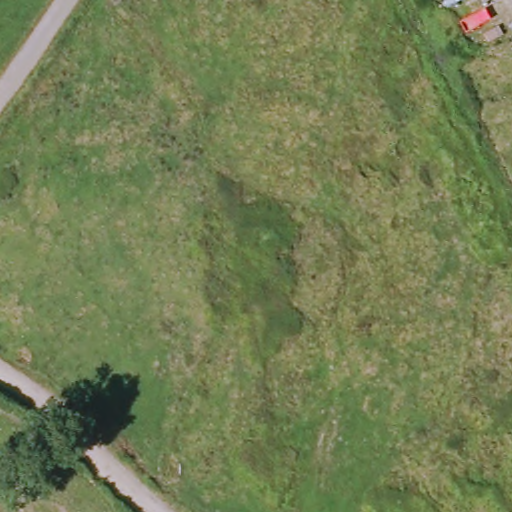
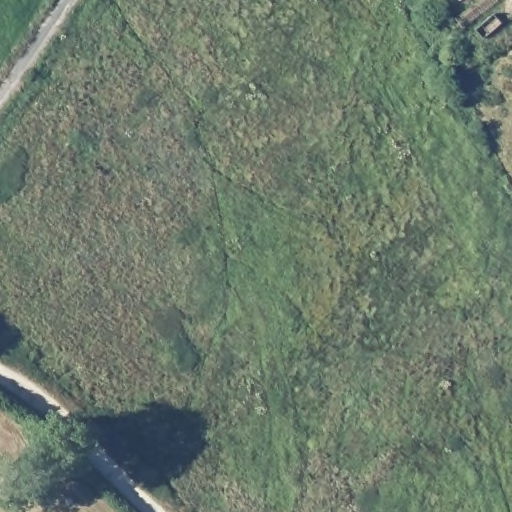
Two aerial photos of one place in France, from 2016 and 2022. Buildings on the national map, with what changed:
[]

